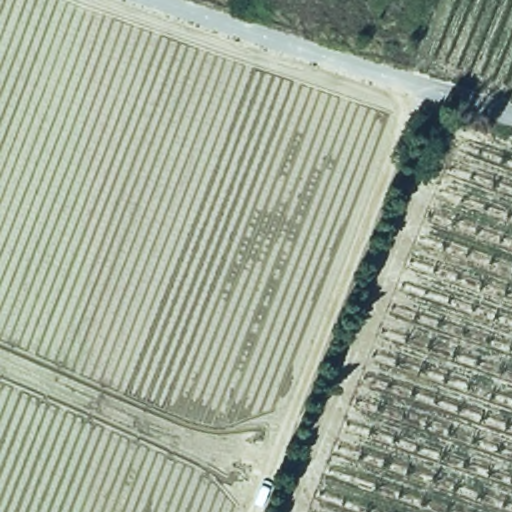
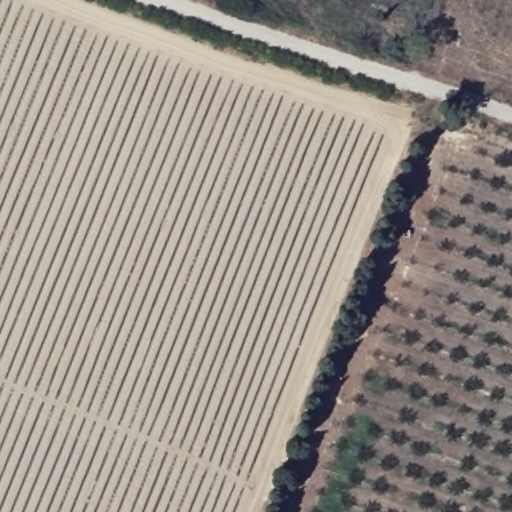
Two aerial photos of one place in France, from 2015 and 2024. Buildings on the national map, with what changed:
unchanged [(455,114),(452,130),(420,122),(424,103),(455,114)]

